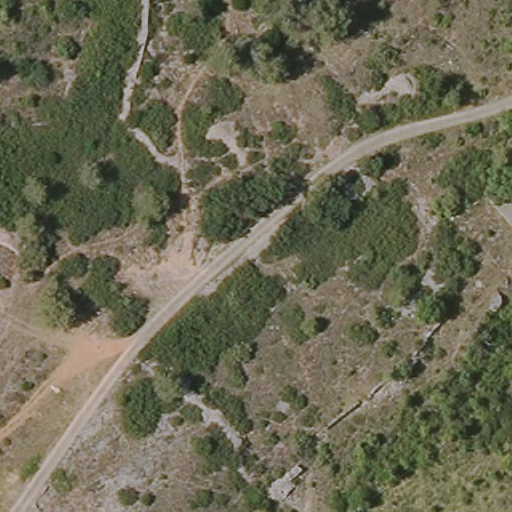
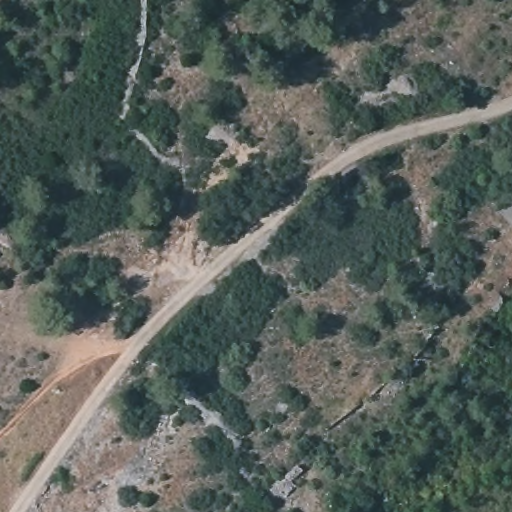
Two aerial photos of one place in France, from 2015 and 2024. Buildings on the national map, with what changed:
unchanged [(494,209),(512,194),(512,224),(508,227),(494,209)]

